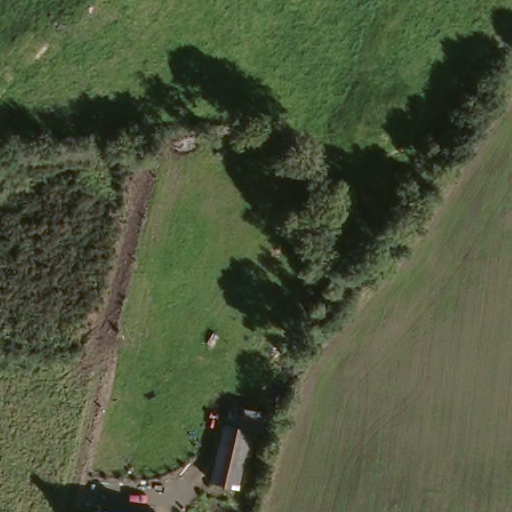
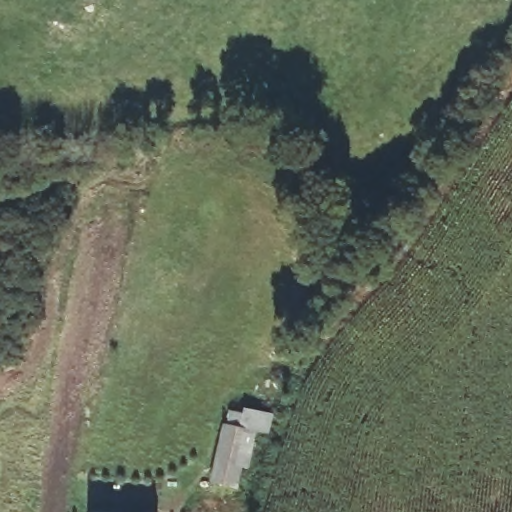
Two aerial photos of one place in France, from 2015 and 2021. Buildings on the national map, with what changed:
unchanged [(243,475),(216,470),(226,409),(254,414),(243,475)]

